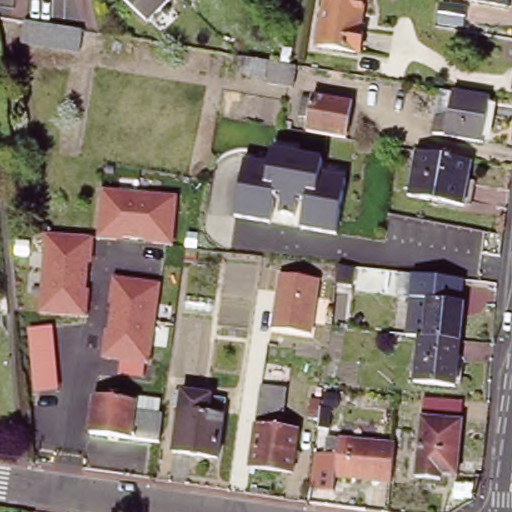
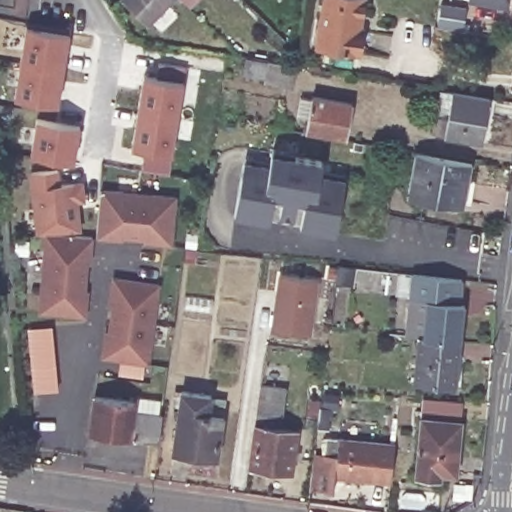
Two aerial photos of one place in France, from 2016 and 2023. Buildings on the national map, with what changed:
unchanged [(120,0),(167,0),(144,23),(120,0)]
unchanged [(356,0),(364,1),(359,31),(364,32),(360,57),(315,49),(324,0),(356,0)]
unchanged [(478,0),(510,0),(509,5),(478,0)]
new [(437,6),(463,10),(460,30),(435,25),(437,6)]
demolished [(85,29),(81,52),(23,42),(27,19),(85,29)]
new [(27,22),(70,28),(64,65),(20,58),(27,22)]
new [(20,58),(64,65),(57,110),(13,103),(20,58)]
new [(140,75),(157,78),(160,61),(187,66),(179,117),(135,109),(140,75)]
unchanged [(484,142),(447,135),(450,123),(439,121),(445,90),(456,92),(493,99),(484,142)]
unchanged [(350,107),(342,141),(305,134),(308,121),(297,119),(301,101),(311,103),(312,99),(350,107)]
new [(135,109),(179,117),(170,173),(142,168),(145,152),(129,150),(135,109)]
new [(75,127),(70,160),(27,153),(33,119),(75,127)]
unchanged [(323,160),(322,171),(347,176),(337,231),(300,225),(304,215),(272,210),(270,222),(235,216),(244,159),(269,162),(271,150),(323,160)]
unchanged [(470,166),(461,209),(405,199),(413,155),(470,166)]
new [(27,174),(55,170),(57,187),(79,183),(81,201),(72,202),(76,233),(45,231),(34,232),(27,174)]
unchanged [(98,237),(102,190),(178,196),(174,244),(98,237)]
unchanged [(92,236),(87,317),(40,314),(45,231),(92,236)]
unchanged [(349,269),(347,286),(332,285),(334,267),(349,269)]
unchanged [(152,362),(102,355),(111,273),(162,281),(152,362)]
unchanged [(420,324),(405,322),(410,276),(460,282),(457,305),(459,305),(454,342),(419,338),(420,324)]
new [(274,280),(313,285),(306,340),(267,335),(274,280)]
unchanged [(450,387),(410,383),(415,338),(419,338),(454,342),(450,387)]
unchanged [(259,388),(284,391),(280,421),(254,417),(259,388)]
unchanged [(136,399),(135,408),(165,412),(162,440),(90,431),(97,393),(136,399)]
unchanged [(325,434),(314,432),(303,431),(307,402),(317,403),(317,415),(327,416),(325,434)]
unchanged [(425,403),(465,407),(462,429),(464,429),(459,484),(444,483),(443,489),(417,486),(423,426),(425,403)]
unchanged [(180,409),(224,415),(219,457),(175,451),(180,409)]
unchanged [(253,427),(295,433),(289,475),(247,468),(253,427)]
unchanged [(324,441),(387,448),(392,449),(389,486),(370,484),(334,480),(335,459),(322,458),(324,441)]

